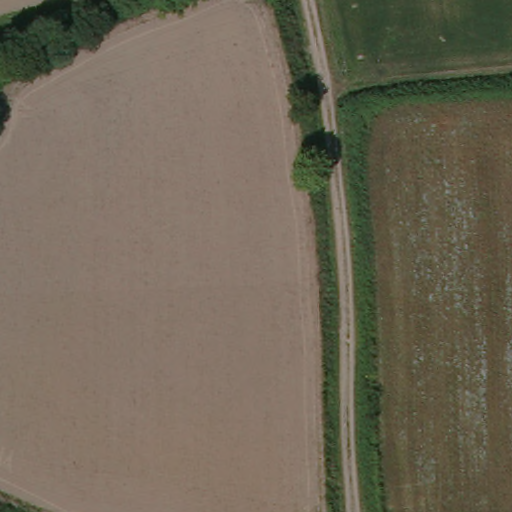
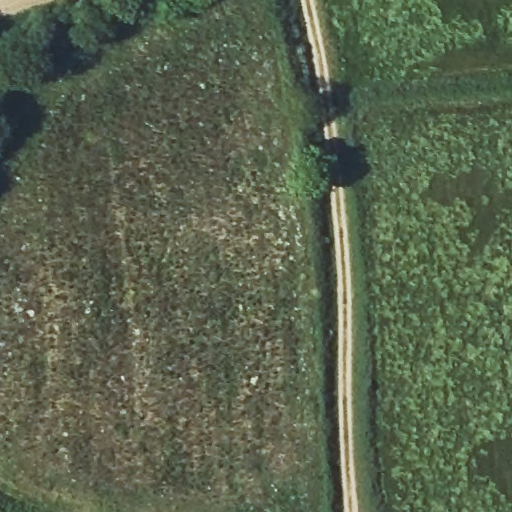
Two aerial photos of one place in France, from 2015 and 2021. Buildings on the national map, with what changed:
[]

